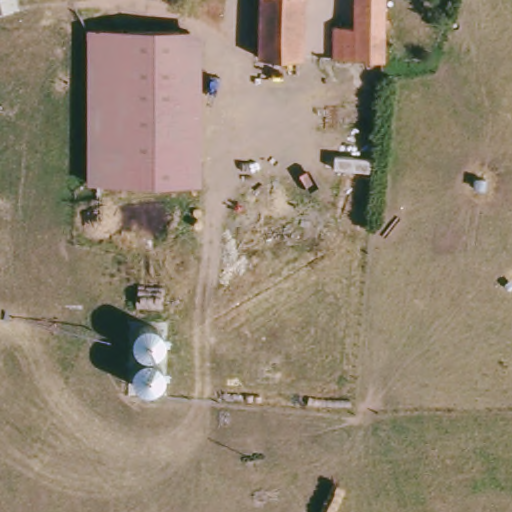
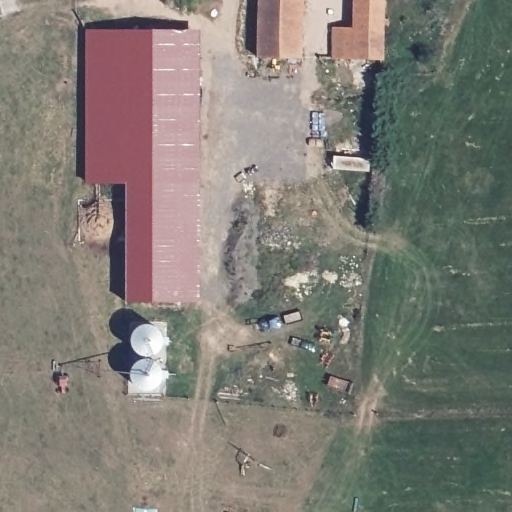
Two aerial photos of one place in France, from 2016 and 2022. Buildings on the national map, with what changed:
unchanged [(300,54),(250,54),(253,0),(302,0),(300,54)]
unchanged [(382,57),(330,55),(330,20),(353,21),(354,0),(384,0),(382,57)]
unchanged [(194,26),(195,180),(80,181),(78,27),(194,26)]
new [(127,301),(127,181),(195,180),(200,181),(201,303),(127,301)]
new [(132,379),(132,372),(135,365),(142,361),(142,357),(135,350),(132,343),(133,334),(141,326),(152,325),(160,329),(163,337),(165,372),(162,386),(158,390),(150,393),(142,392),(135,389),(132,383),(132,379)]

